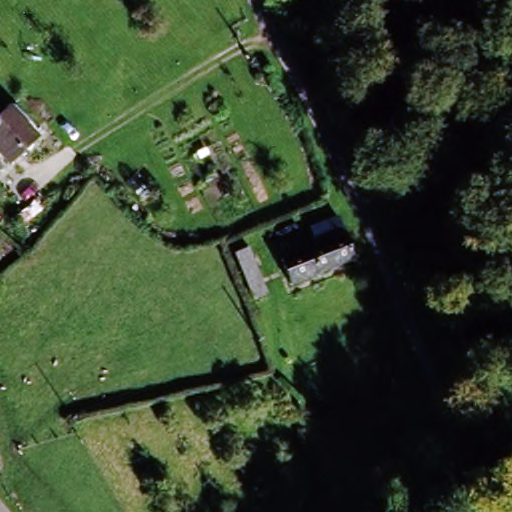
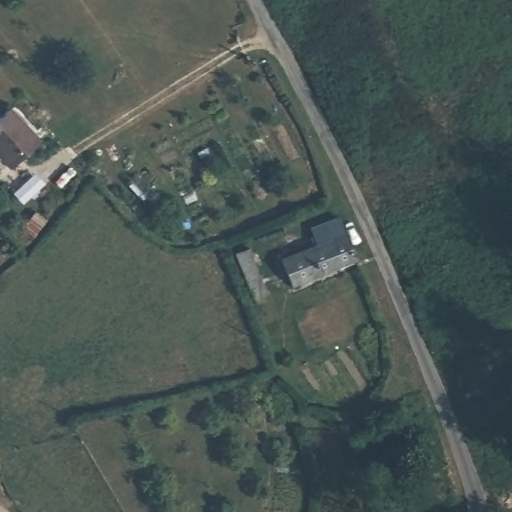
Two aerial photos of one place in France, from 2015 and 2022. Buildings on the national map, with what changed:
unchanged [(30,133),(0,161),(0,160),(0,105),(3,103),(30,133)]
unchanged [(275,259),(283,256),(311,244),(305,225),(334,211),(335,212),(338,220),(339,221),(354,258),(353,258),(311,274),(292,281),(286,284),(275,259)]

